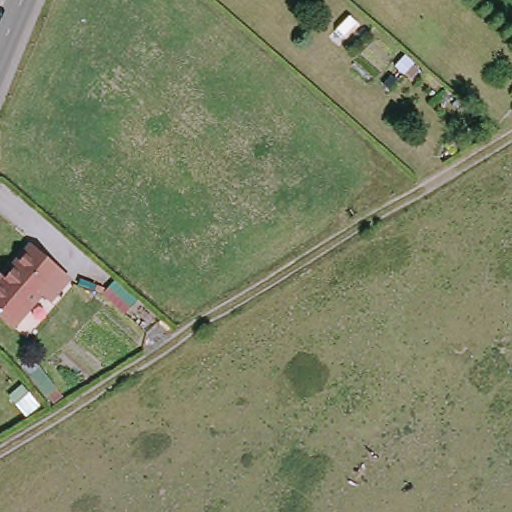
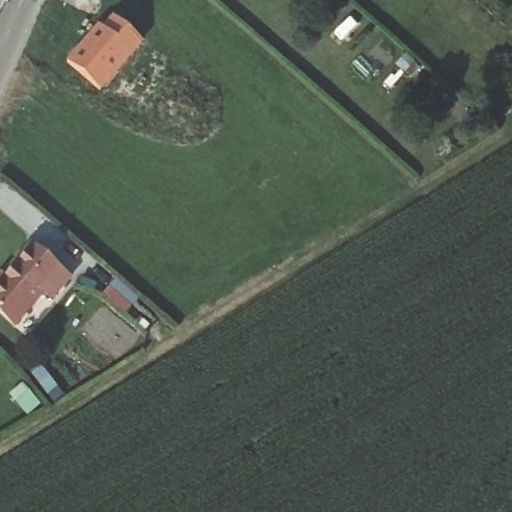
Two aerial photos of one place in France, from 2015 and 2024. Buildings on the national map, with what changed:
new [(66,62),(98,24),(101,27),(111,16),(143,44),(100,92),(66,62)]
unchanged [(9,279),(31,244),(73,275),(55,300),(48,294),(23,327),(0,311),(0,281),(3,275),(9,279)]

